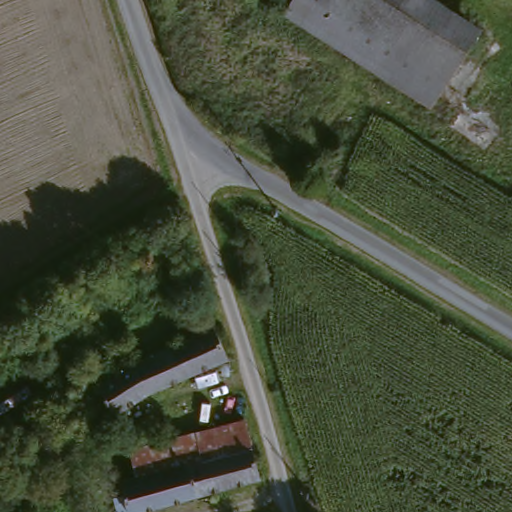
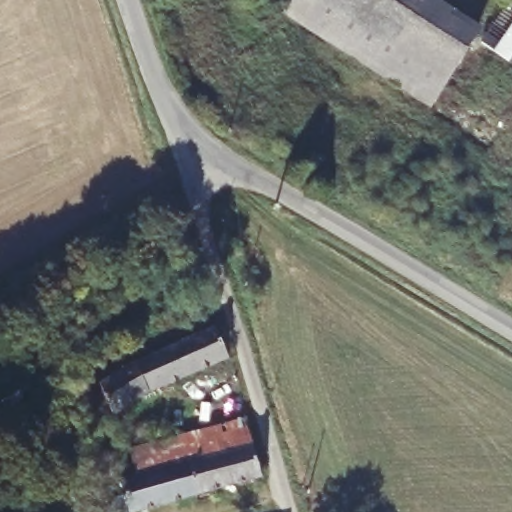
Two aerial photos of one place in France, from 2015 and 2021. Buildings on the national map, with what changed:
unchanged [(432,99),(286,6),(291,0),(332,0),(449,72),(432,99)]
unchanged [(449,72),(332,0),(434,0),(478,27),(449,72)]
unchanged [(212,330),(225,359),(149,395),(134,365),(212,330)]
unchanged [(112,415),(99,386),(134,365),(149,395),(112,415)]
unchanged [(185,462),(173,465),(136,475),(130,452),(167,442),(242,421),(248,445),(185,462)]
unchanged [(255,478),(193,494),(185,462),(248,445),(255,478)]
unchanged [(193,494),(128,510),(120,479),(136,475),(173,465),(185,462),(193,494)]

